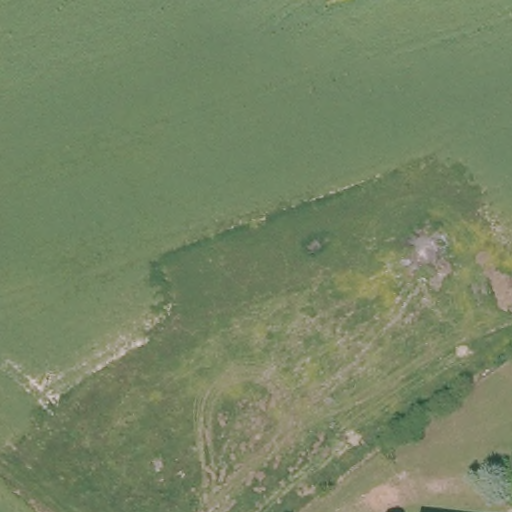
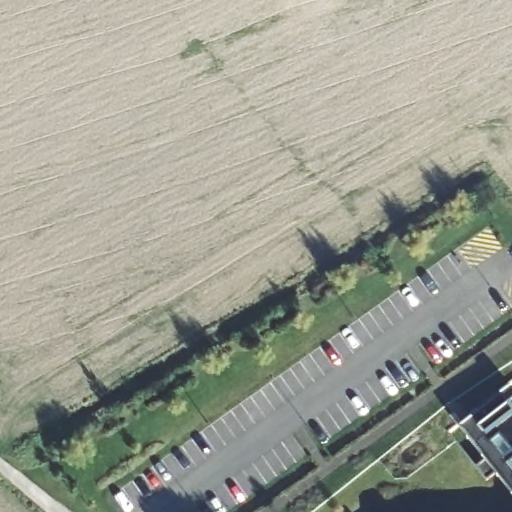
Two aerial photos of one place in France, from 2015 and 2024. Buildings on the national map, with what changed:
new [(510,387),(512,389),(512,501),(459,428),(510,387)]

